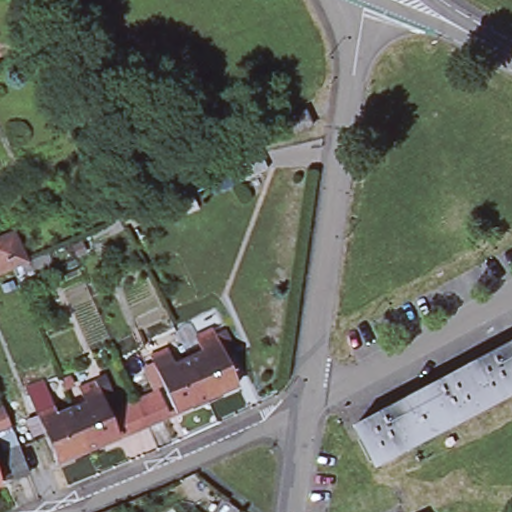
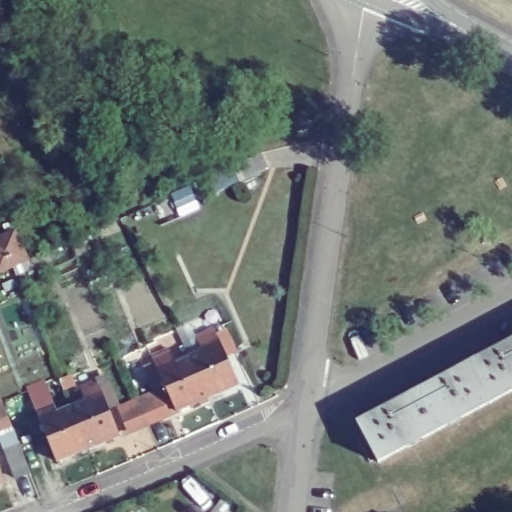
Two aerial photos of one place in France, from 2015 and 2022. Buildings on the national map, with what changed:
unchanged [(306,109),(313,125),(297,132),(290,116),(306,109)]
unchanged [(268,169),(239,182),(231,166),(261,153),(268,169)]
unchanged [(12,267),(0,272),(0,238),(14,231),(27,259),(30,268),(16,275),(12,267)]
unchanged [(208,393),(189,352),(203,346),(200,339),(197,332),(214,324),(217,331),(238,379),(208,393)]
unchanged [(469,363),(512,340),(512,392),(490,404),(469,363)]
unchanged [(154,358),(151,351),(168,343),(172,351),(175,359),(189,352),(208,393),(177,407),(154,358)]
unchanged [(469,363),(490,404),(379,463),(357,423),(407,396),(405,392),(418,385),(420,389),(469,363)]
unchanged [(88,444),(71,403),(85,397),(82,389),(79,382),(96,374),(99,382),(119,431),(88,444)]
unchanged [(117,403),(138,394),(158,385),(169,410),(148,419),(128,428),(117,403)]
unchanged [(2,401),(11,424),(0,428),(0,401),(2,401)]
unchanged [(57,457),(36,408),(54,401),(57,408),(71,403),(88,444),(57,457)]
unchanged [(4,451),(0,441),(0,436),(14,431),(20,445),(30,473),(15,479),(4,451)]
unchanged [(224,498),(239,511),(238,512),(213,512),(224,498)]

